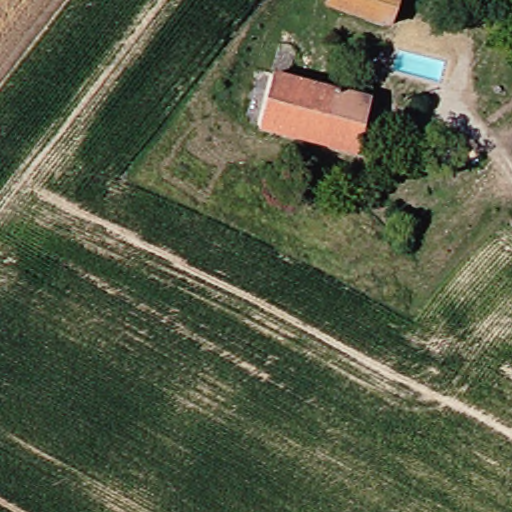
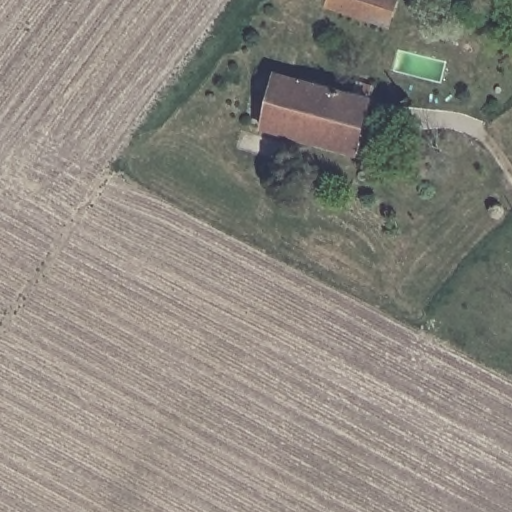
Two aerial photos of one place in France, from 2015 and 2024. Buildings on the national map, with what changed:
unchanged [(317,1),(318,0),(392,0),(382,25),(317,1)]
unchanged [(322,145),(234,107),(255,58),(343,95),(352,75),(371,82),(362,104),(341,153),(322,145)]

